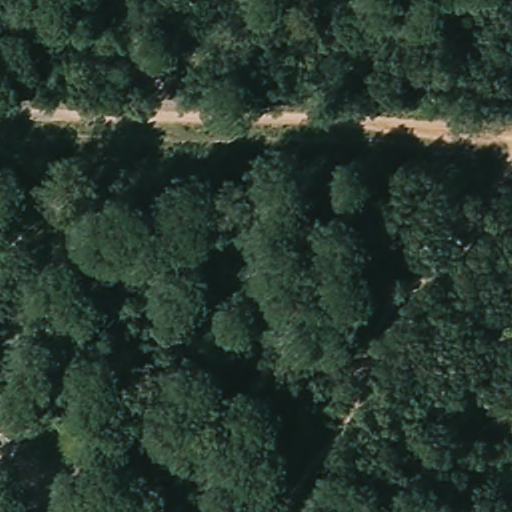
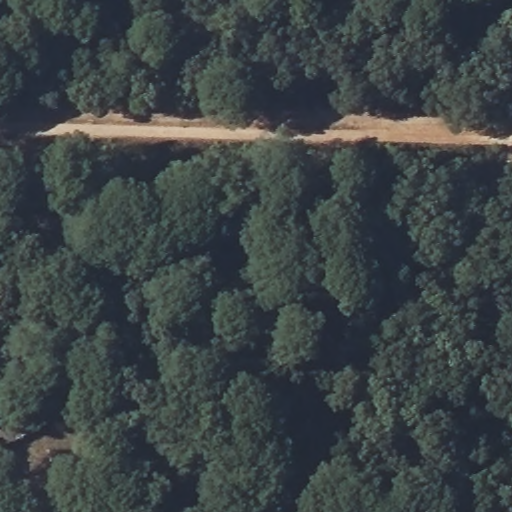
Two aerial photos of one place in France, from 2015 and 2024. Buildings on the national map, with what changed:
unchanged [(0,449),(0,423),(30,413),(38,433),(0,449)]

